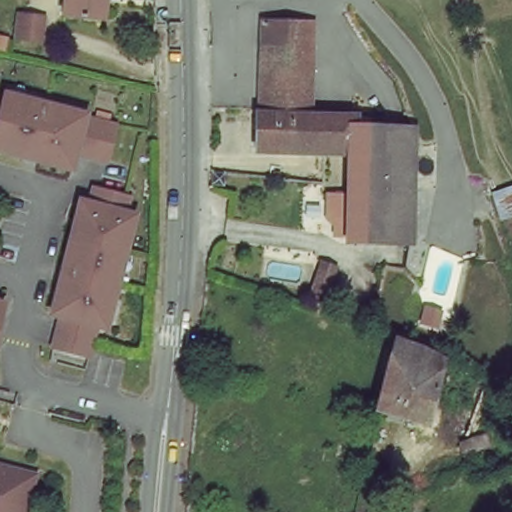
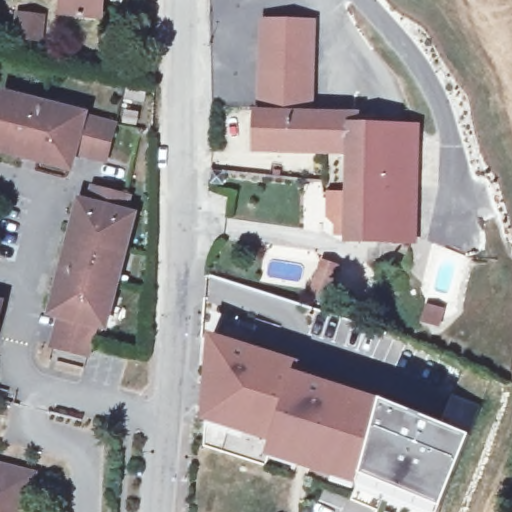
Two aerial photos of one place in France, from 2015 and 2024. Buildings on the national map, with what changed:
unchanged [(62,0),(102,0),(100,18),(60,14),(62,0)]
unchanged [(42,18),(39,39),(15,37),(17,15),(42,18)]
unchanged [(386,197),(384,241),(345,239),(347,199),(349,149),(251,145),(252,105),(256,106),(260,20),(309,22),(304,114),(354,117),(377,119),(377,133),(388,133),(386,197)]
unchanged [(1,90),(81,111),(78,122),(110,130),(102,161),(70,154),(67,165),(0,148),(0,92),(1,90)]
unchanged [(386,197),(388,133),(419,135),(423,135),(418,243),(384,241),(386,197)]
demolished [(493,189),(512,183),(512,212),(501,216),(493,189)]
unchanged [(96,331),(88,362),(57,354),(65,322),(53,319),(74,239),(82,241),(90,212),(93,213),(97,198),(128,206),(124,221),(128,222),(120,251),(128,253),(107,333),(96,331)]
unchanged [(335,261),(324,291),(306,286),(316,256),(335,261)]
new [(302,362),(301,375),(381,401),(471,436),(439,505),(437,512),(375,512),(377,509),(351,499),(356,485),(266,457),(271,441),(201,422),(208,333),(302,362)]
demolished [(394,339),(428,348),(425,359),(444,364),(430,419),(378,404),(394,339)]
unchanged [(4,465),(26,471),(23,483),(16,512),(0,512),(0,465),(4,465)]

